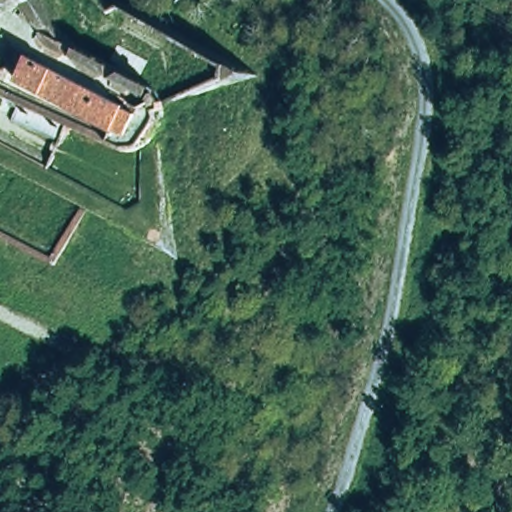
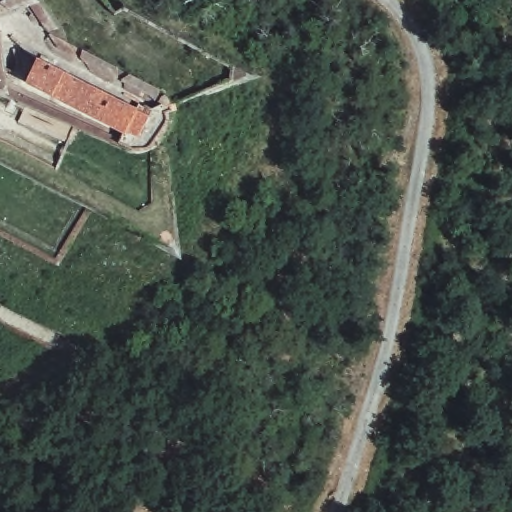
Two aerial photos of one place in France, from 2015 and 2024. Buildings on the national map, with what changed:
unchanged [(0,0),(38,0),(69,46),(179,105),(149,151),(0,89),(0,0)]

